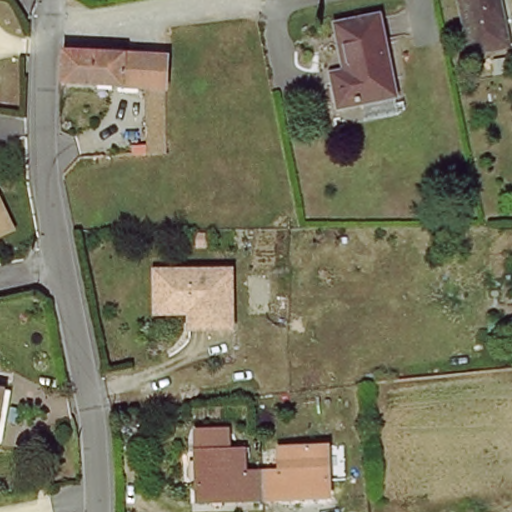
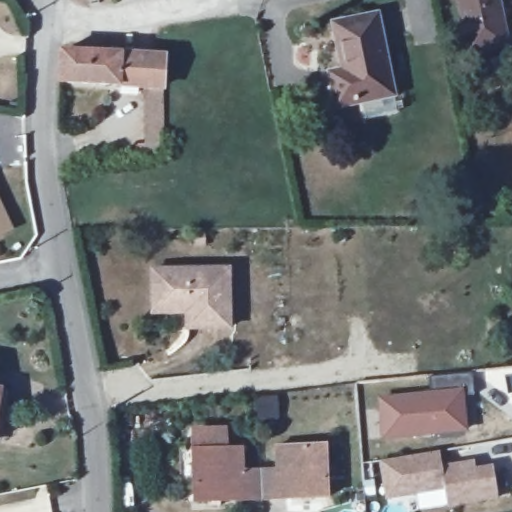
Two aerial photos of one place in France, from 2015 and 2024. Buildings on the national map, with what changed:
unchanged [(460,0),(501,0),(511,41),(472,50),(460,0)]
unchanged [(345,107),(340,79),(349,76),(339,25),(380,15),(398,93),(345,107)]
unchanged [(151,150),(149,135),(148,82),(65,80),(66,61),(67,51),(72,50),(74,47),(165,55),(165,114),(166,135),(167,149),(151,150)]
unchanged [(22,230),(0,240),(0,182),(22,230)]
unchanged [(149,303),(150,273),(226,273),(226,331),(183,332),(183,316),(149,316),(149,303)]
new [(465,431),(384,438),(380,400),(430,395),(428,379),(472,375),(474,396),(462,397),(465,431)]
unchanged [(3,386),(0,399),(0,385),(3,386)]
unchanged [(195,445),(189,445),(189,428),(223,430),(223,447),(195,445)]
unchanged [(285,472),(283,447),(329,445),(329,498),(268,500),(267,472),(285,472)]
unchanged [(268,500),(198,503),(197,485),(203,485),(200,450),(247,448),(246,472),(267,472),(268,500)]
new [(475,463),(476,471),(493,468),(498,498),(447,507),(445,490),(387,498),(381,461),(440,452),(442,468),(475,463)]

